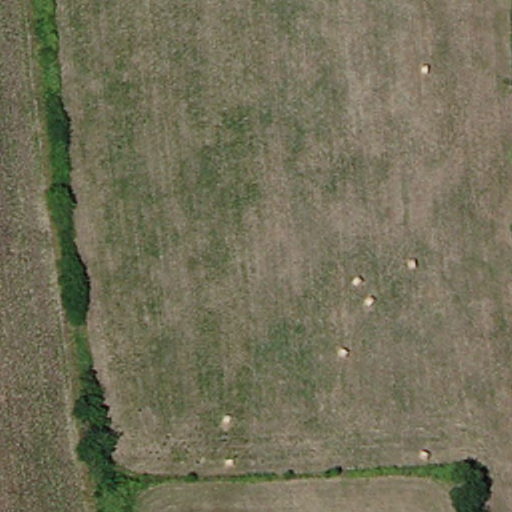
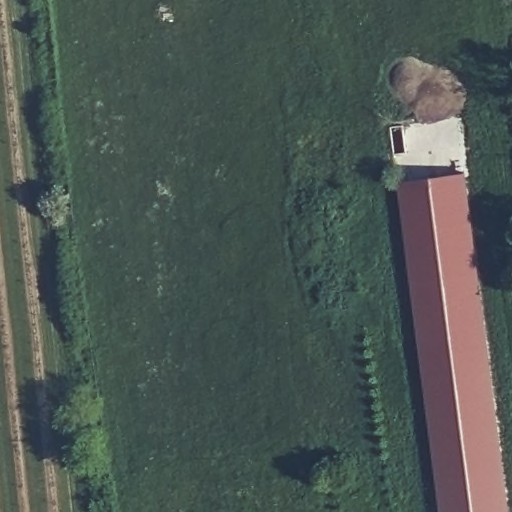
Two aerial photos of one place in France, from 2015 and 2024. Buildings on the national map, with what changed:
new [(468,173),(510,512),(440,512),(398,182),(468,173)]

